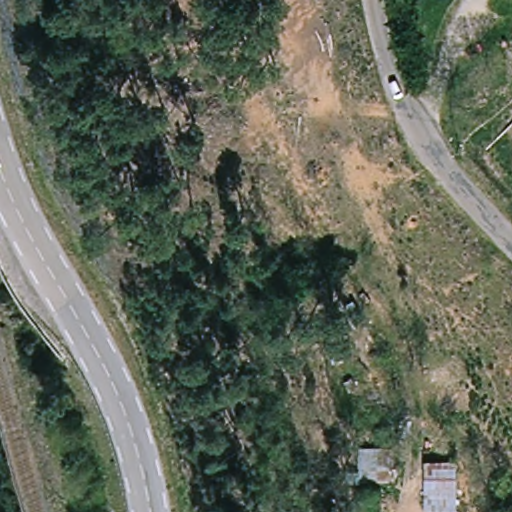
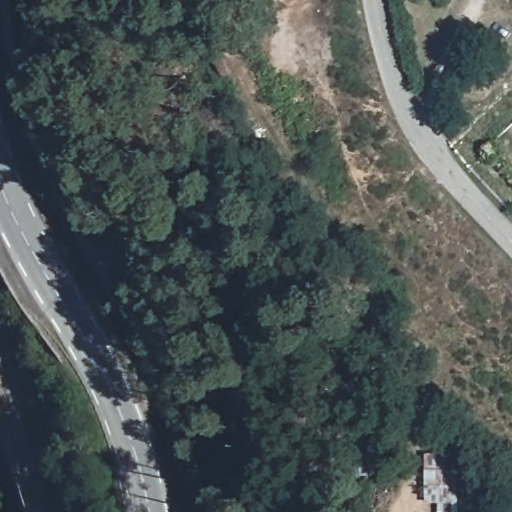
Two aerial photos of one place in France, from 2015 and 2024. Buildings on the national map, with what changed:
unchanged [(428,452),(460,452),(458,503),(427,500),(428,452)]

